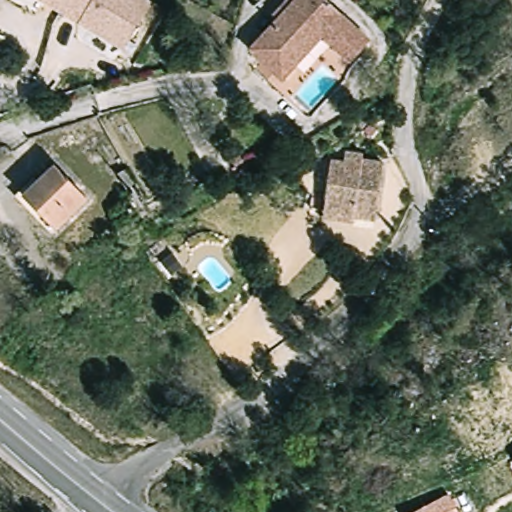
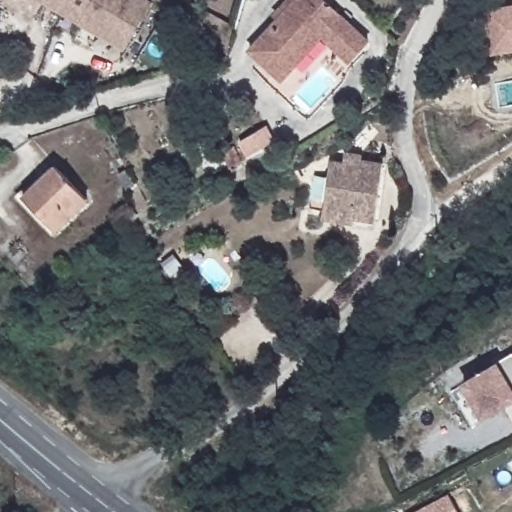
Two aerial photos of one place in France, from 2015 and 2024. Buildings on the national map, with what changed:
unchanged [(124,49),(44,0),(146,0),(152,4),(124,49)]
unchanged [(253,44),(300,0),(330,0),(372,45),(352,63),(325,35),(298,62),(284,76),(269,61),(253,44)]
new [(479,12),(512,5),(512,51),(487,56),(479,12)]
unchanged [(352,217),(350,222),(322,217),(334,162),(351,166),(354,152),(370,156),(368,162),(388,165),(376,222),(352,217)]
unchanged [(87,202),(57,231),(25,196),(55,167),(87,202)]
new [(460,382),(497,361),(512,353),(512,402),(483,419),(460,382)]
unchanged [(446,495),(455,512),(415,512),(446,495)]

